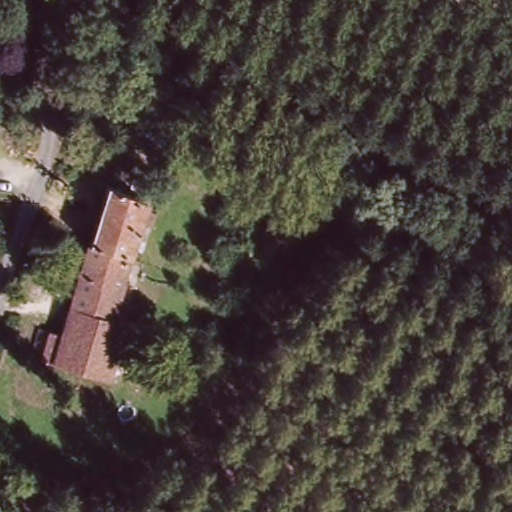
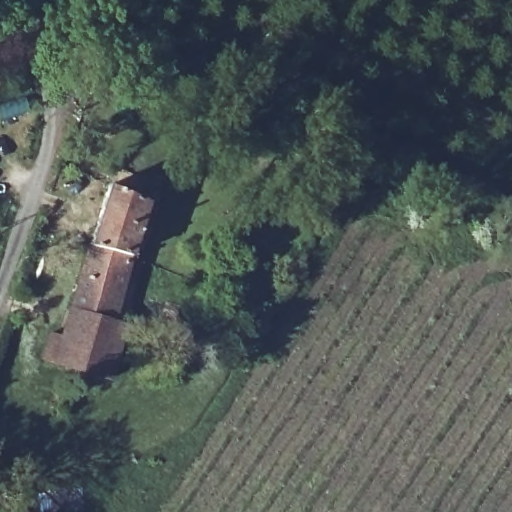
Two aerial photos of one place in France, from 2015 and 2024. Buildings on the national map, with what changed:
unchanged [(142,246),(135,243),(129,260),(90,248),(110,187),(146,203),(140,220),(149,224),(142,246)]
unchanged [(108,321),(126,328),(107,378),(42,355),(49,335),(61,336),(90,248),(129,260),(108,321)]

